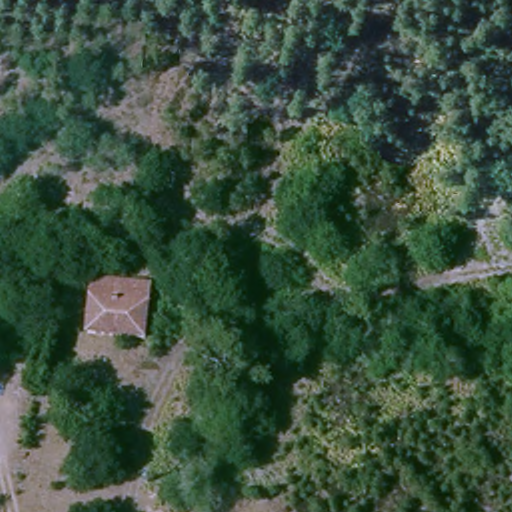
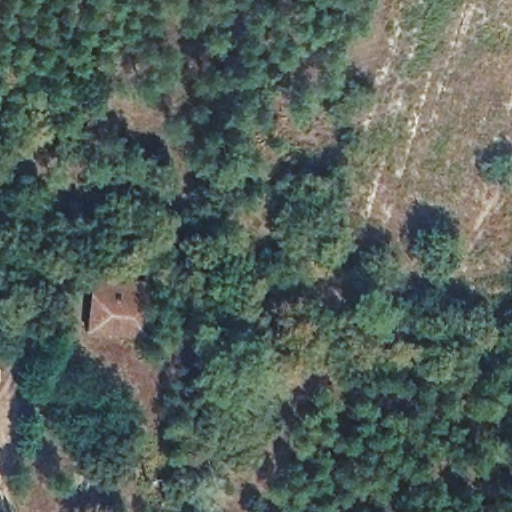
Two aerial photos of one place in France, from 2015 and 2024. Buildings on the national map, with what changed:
unchanged [(94,341),(99,287),(144,289),(142,344),(94,341)]

